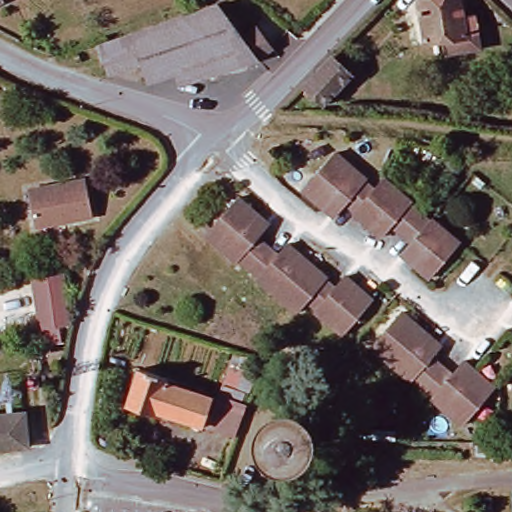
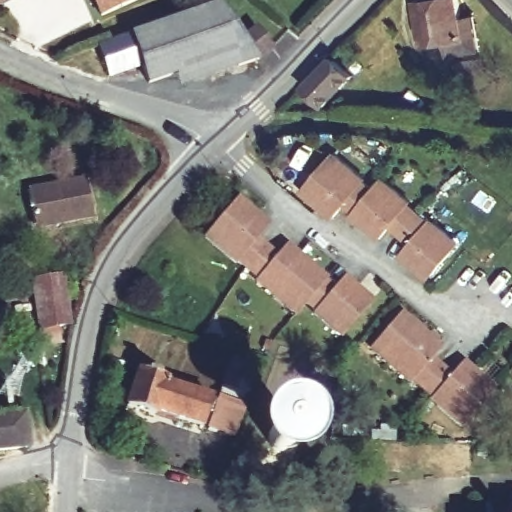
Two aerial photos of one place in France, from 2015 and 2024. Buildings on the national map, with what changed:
unchanged [(0,0),(6,0),(6,1),(0,4),(0,0)]
new [(132,1),(96,17),(89,0),(132,0),(132,1)]
unchanged [(423,44),(416,4),(438,0),(457,0),(463,37),(423,44)]
unchanged [(180,77),(150,87),(143,67),(110,79),(99,48),(218,5),(242,39),(257,30),(274,51),(260,62),(262,64),(241,71),(183,90),(180,77)]
unchanged [(330,59),(350,77),(323,107),(302,89),(330,59)]
unchanged [(430,281),(412,265),(401,256),(412,244),(393,228),(380,243),(346,212),(338,221),(320,206),(306,194),(340,156),(368,179),(375,172),(460,244),(430,281)]
unchanged [(87,177),(91,216),(38,222),(33,183),(87,177)]
unchanged [(252,212),(267,225),(259,235),(282,255),(290,246),(295,251),(322,273),(338,287),(345,279),(352,286),(375,306),(345,337),(309,307),(298,318),(202,235),(235,197),(252,212)]
unchanged [(45,324),(37,276),(62,273),(70,320),(45,324)]
unchanged [(407,314),(429,333),(447,349),(442,354),(376,348),(407,314)]
unchanged [(442,354),(438,359),(460,378),(471,366),(497,389),(462,431),(372,353),(376,348),(442,354)]
unchanged [(160,413),(158,418),(133,409),(147,369),(178,379),(177,384),(215,396),(205,428),(160,413)]
unchanged [(31,446),(0,450),(0,417),(26,414),(31,446)]

